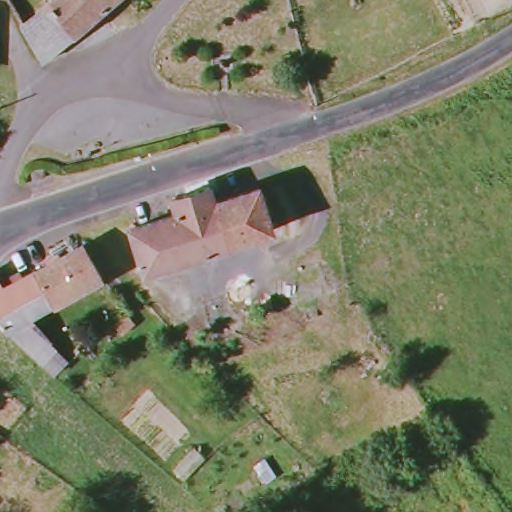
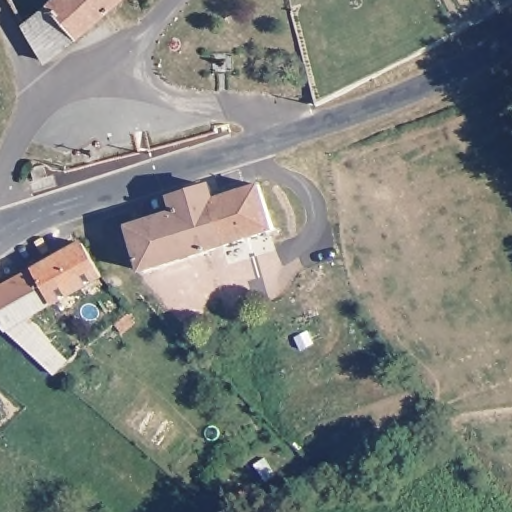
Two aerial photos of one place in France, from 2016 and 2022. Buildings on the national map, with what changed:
unchanged [(41,1),(43,0),(111,0),(70,36),(41,1)]
unchanged [(13,25),(41,1),(70,36),(37,60),(13,25)]
unchanged [(207,205),(251,191),(267,235),(137,274),(122,230),(167,217),(164,203),(203,192),(207,205)]
unchanged [(10,270),(15,279),(78,248),(97,282),(19,320),(0,329),(0,276),(10,270)]
unchanged [(0,329),(19,320),(58,360),(48,373),(0,329)]

